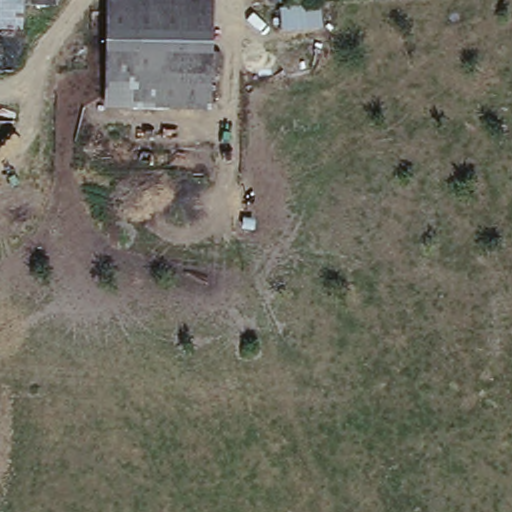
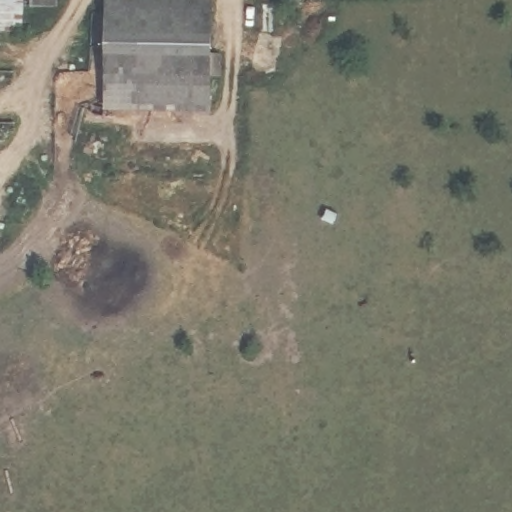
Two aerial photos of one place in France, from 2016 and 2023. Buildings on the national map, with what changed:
unchanged [(0,30),(0,0),(43,0),(42,32),(0,30)]
unchanged [(129,106),(129,74),(104,73),(106,0),(214,0),(210,109),(129,106)]

